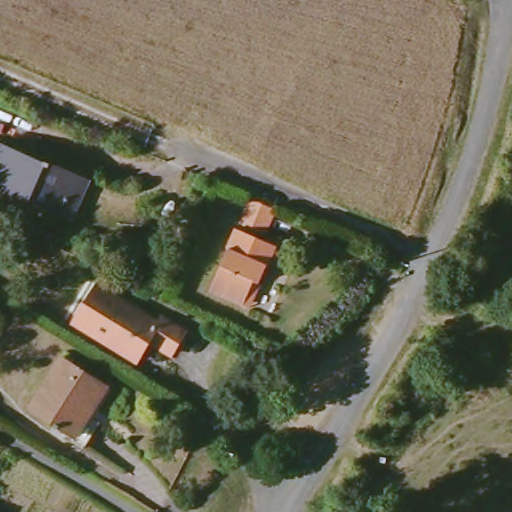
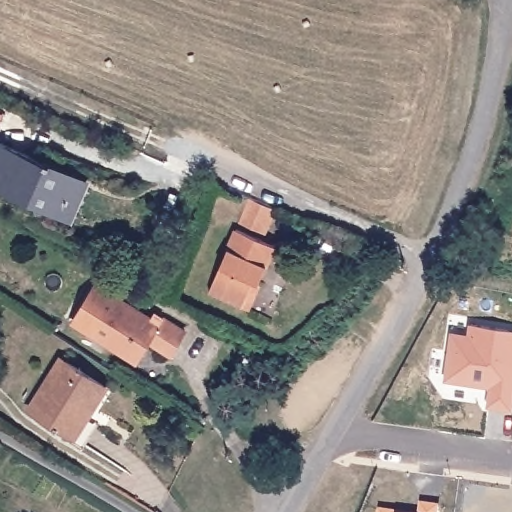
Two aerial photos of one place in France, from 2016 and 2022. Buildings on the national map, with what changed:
unchanged [(73,223),(55,215),(0,190),(0,145),(0,144),(47,163),(47,162),(60,167),(58,170),(86,182),(77,204),(81,206),(73,223)]
unchanged [(235,219),(245,194),(270,205),(260,230),(235,219)]
unchanged [(238,302),(205,287),(232,225),(270,241),(254,279),(244,304),(238,302)]
unchanged [(150,337),(137,357),(108,339),(113,331),(95,319),(90,328),(73,318),(96,281),(159,319),(162,313),(186,327),(172,351),(150,337)]
new [(490,387),(444,381),(450,335),(468,337),(469,325),(512,331),(512,401),(511,409),(487,407),(490,387)]
unchanged [(75,437),(30,410),(62,358),(107,387),(88,416),(75,438),(75,437)]
new [(422,501),(441,503),(440,512),(419,512),(422,501)]
new [(379,507),(415,512),(378,512),(379,507)]

